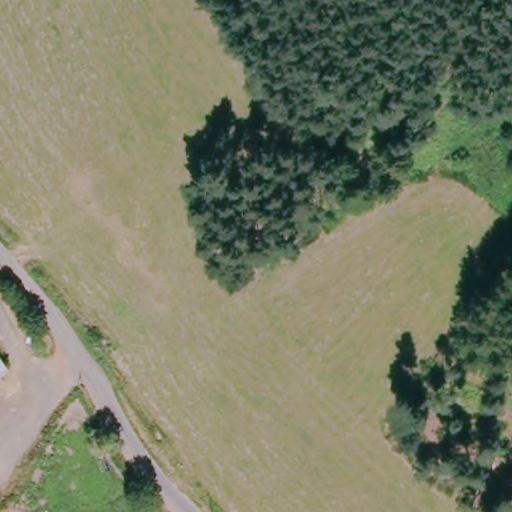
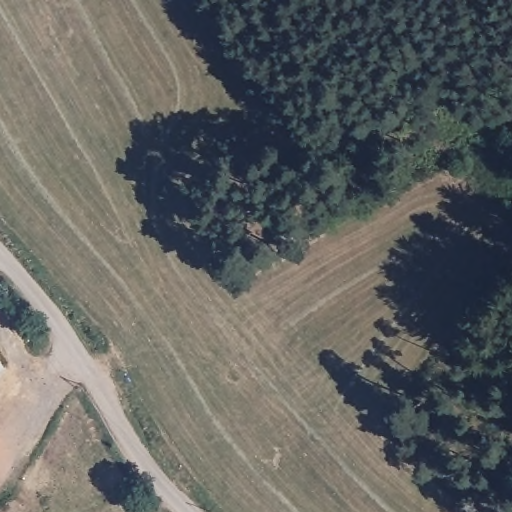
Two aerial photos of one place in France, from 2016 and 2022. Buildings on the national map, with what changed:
unchanged [(0,370),(0,352),(9,363),(0,370)]

